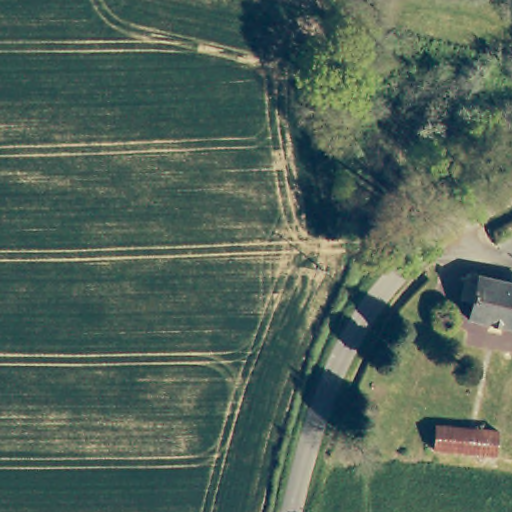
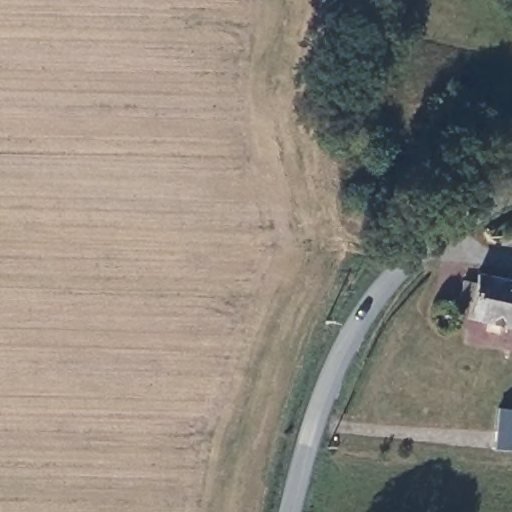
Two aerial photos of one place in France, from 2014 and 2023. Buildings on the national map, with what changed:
unchanged [(498,325),(469,319),(472,304),(460,301),(463,282),(475,284),(477,274),(507,281),(498,325)]
unchanged [(512,328),(498,325),(507,281),(512,282),(512,328)]
new [(512,450),(493,449),(496,409),(512,410),(512,450)]

